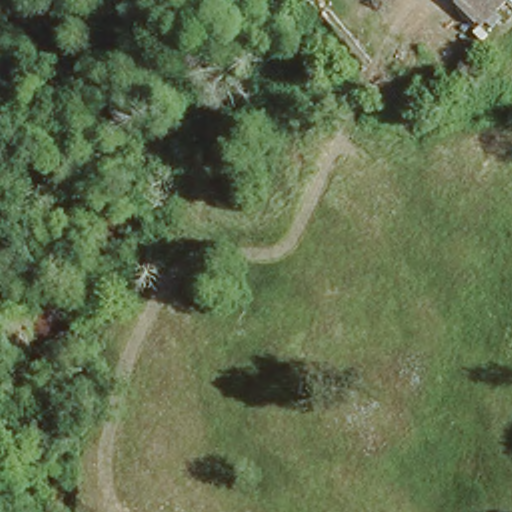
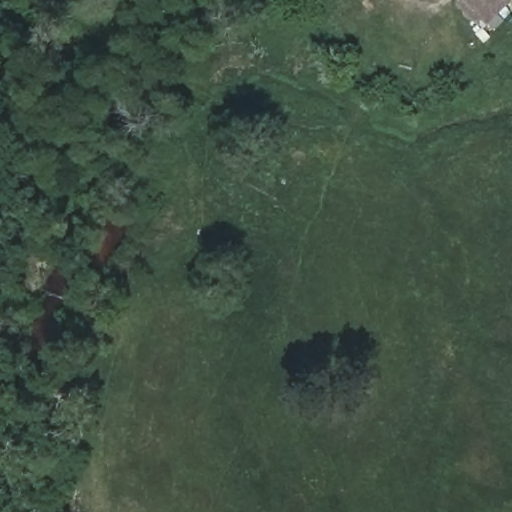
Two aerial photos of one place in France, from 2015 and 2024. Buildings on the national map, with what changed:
unchanged [(460,5),(466,0),(509,0),(483,27),(460,5)]

